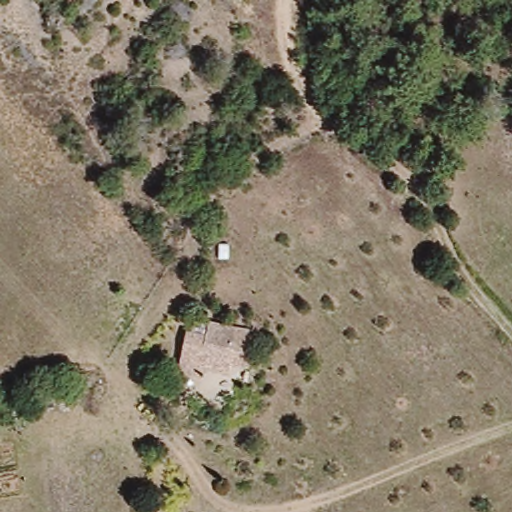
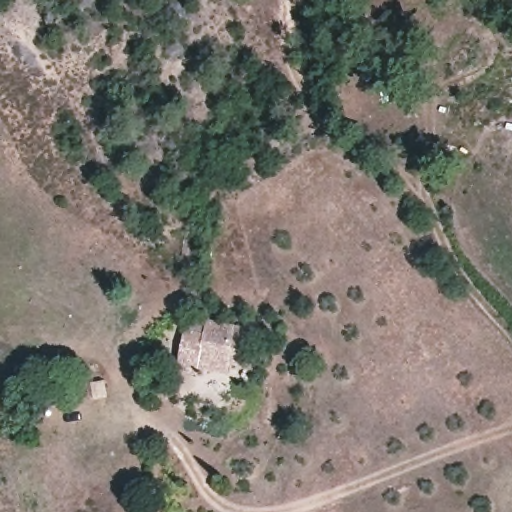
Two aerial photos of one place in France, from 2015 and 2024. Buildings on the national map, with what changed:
unchanged [(250,359),(243,358),(233,356),(232,362),(200,357),(197,368),(177,362),(187,327),(206,332),(210,319),(257,330),(250,359)]
unchanged [(238,378),(229,377),(212,370),(205,383),(173,375),(177,362),(197,368),(200,357),(232,362),(233,356),(243,358),(238,378)]

